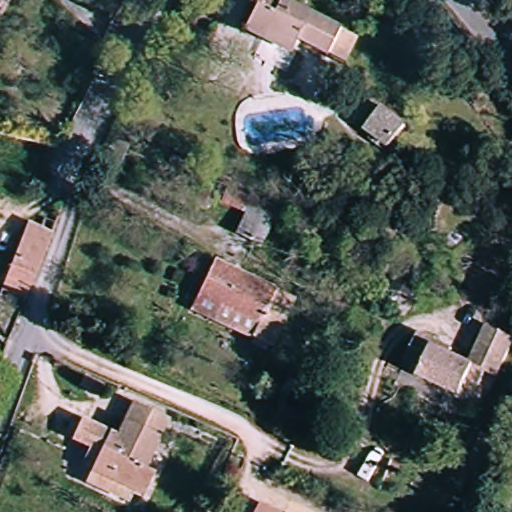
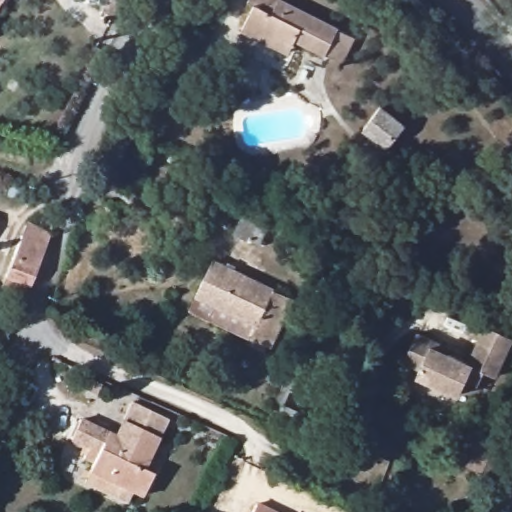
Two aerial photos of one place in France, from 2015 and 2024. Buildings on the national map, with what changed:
unchanged [(114,0),(116,0),(133,11),(119,33),(101,22),(114,0)]
unchanged [(263,39),(246,31),(259,2),(277,11),(281,1),(343,29),(331,54),(301,40),(298,45),(293,53),(263,39)]
unchanged [(385,146),(359,129),(373,107),(400,124),(385,146)]
unchanged [(224,237),(245,194),(272,209),(252,250),(224,237)]
unchanged [(7,286),(19,255),(32,229),(57,236),(47,264),(43,262),(31,295),(7,286)]
unchanged [(180,310),(187,297),(206,264),(263,295),(243,328),(208,310),(200,321),(180,310)]
unchanged [(512,339),(512,356),(499,380),(487,374),(480,387),(469,381),(461,396),(420,374),(424,367),(409,359),(424,332),(456,350),(453,355),(473,365),(492,328),(512,339)]
unchanged [(277,422),(284,410),(308,421),(298,440),(273,428),(277,422)]
unchanged [(89,475),(94,465),(98,459),(83,451),(88,439),(73,431),(82,414),(120,431),(129,412),(163,430),(148,463),(157,469),(145,491),(127,482),(122,491),(89,475)]
unchanged [(508,447),(494,482),(469,475),(483,437),(508,447)]
unchanged [(254,504),(271,512),(251,512),(254,504)]

